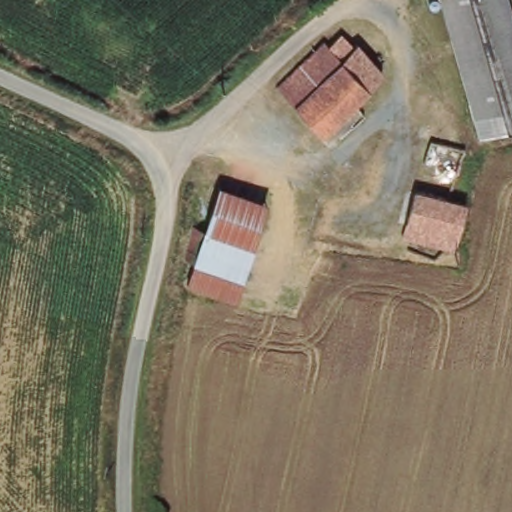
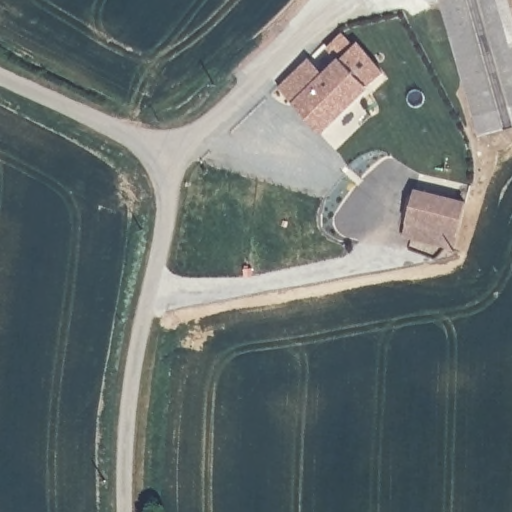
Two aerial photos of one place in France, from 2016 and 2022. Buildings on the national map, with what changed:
unchanged [(487,136),(447,0),(512,0),(512,130),(487,136)]
unchanged [(332,41),(338,47),(352,34),(362,45),(366,42),(392,73),(323,134),(281,87),(332,41)]
demolished [(190,288),(221,184),(271,199),(240,300),(190,288)]
unchanged [(415,189),(467,202),(459,233),(455,250),(403,236),(406,221),(415,189)]

